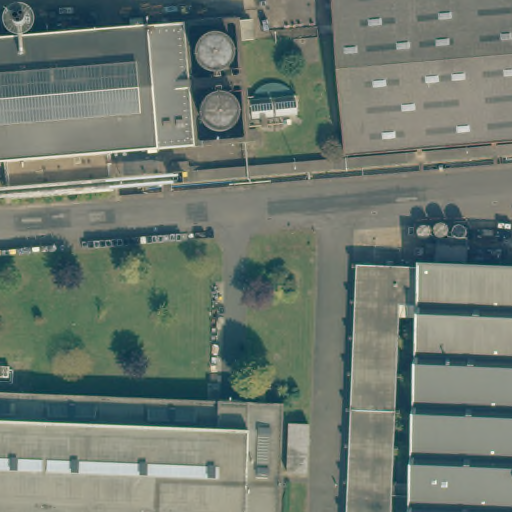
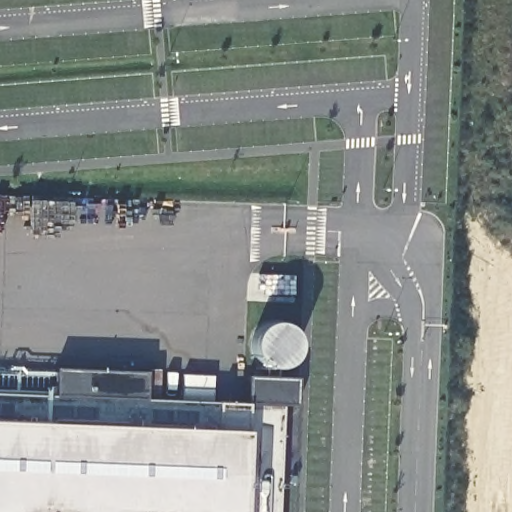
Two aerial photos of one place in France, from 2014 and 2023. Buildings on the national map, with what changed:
demolished [(339,0),(512,0),(512,137),(350,150),(339,0)]
demolished [(0,36),(232,17),(239,128),(250,127),(251,139),(100,150),(0,159),(0,36)]
demolished [(258,130),(253,129),(249,125),(245,121),(243,116),(241,111),(240,106),(241,101),(243,96),(245,91),(249,87),(253,85),(258,82),(263,81),(269,82),(274,83),(278,85),(282,89),(286,92),(288,96),(290,101),(290,106),(290,111),(288,116),(286,121),(282,125),(278,128),(274,130),(269,131),(263,131),(258,130)]
demolished [(386,499),(386,512),(347,512),(355,270),(413,272),(414,265),(512,269),(512,512),(405,512),(405,500),(386,499)]
new [(57,369),(146,373),(144,401),(217,401),(246,404),(248,376),(295,379),(295,405),(281,405),(276,512),(0,512),(0,391),(55,394),(57,369)]
demolished [(275,512),(0,512),(0,388),(279,398),(275,512)]

